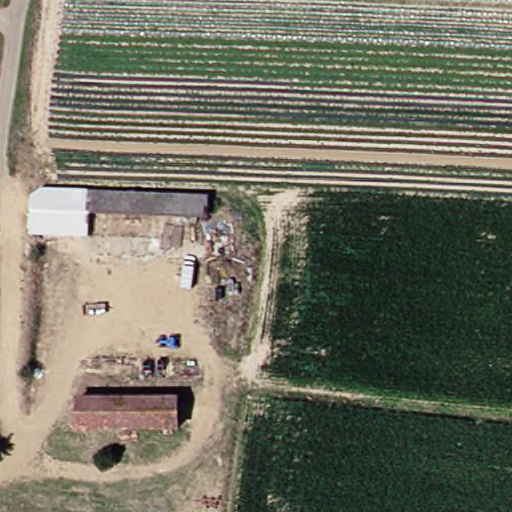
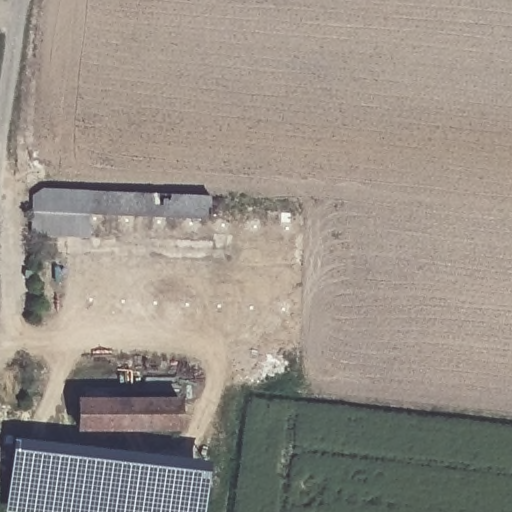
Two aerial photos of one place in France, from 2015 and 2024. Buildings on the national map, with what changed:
unchanged [(51,233),(53,190),(201,192),(200,213),(82,212),(81,234),(51,233)]
unchanged [(70,429),(69,396),(173,394),(174,426),(70,429)]
new [(203,512),(11,512),(7,512),(13,437),(209,460),(203,512)]

